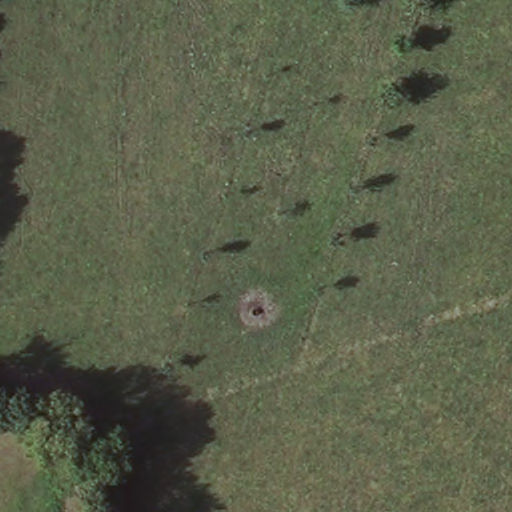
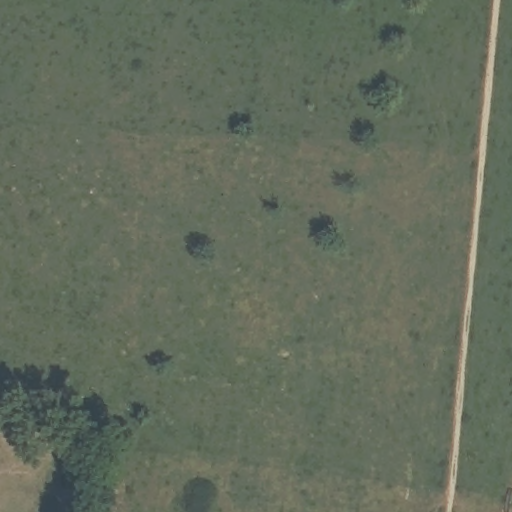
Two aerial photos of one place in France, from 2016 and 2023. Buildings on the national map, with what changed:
[]

